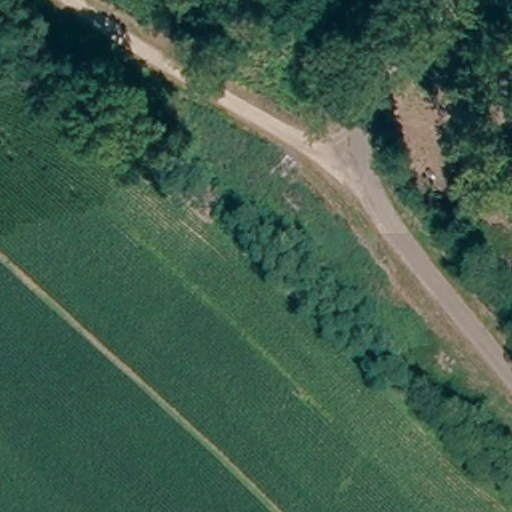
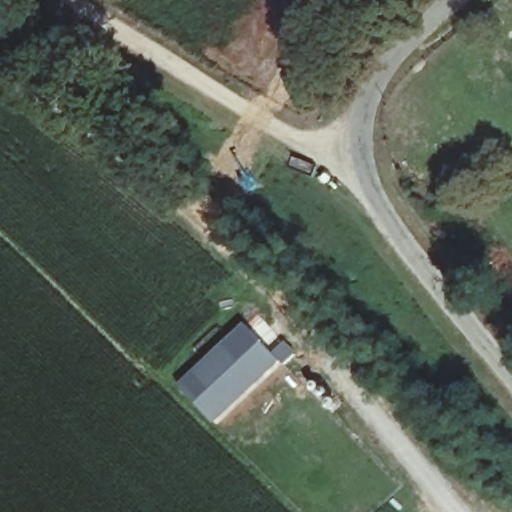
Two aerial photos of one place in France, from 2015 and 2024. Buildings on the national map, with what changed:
new [(271,353),(285,341),(296,352),(283,364),(280,361),(214,423),(179,384),(245,322),(271,353)]

